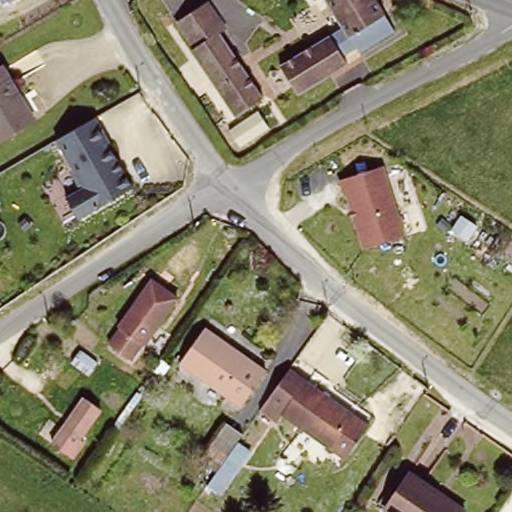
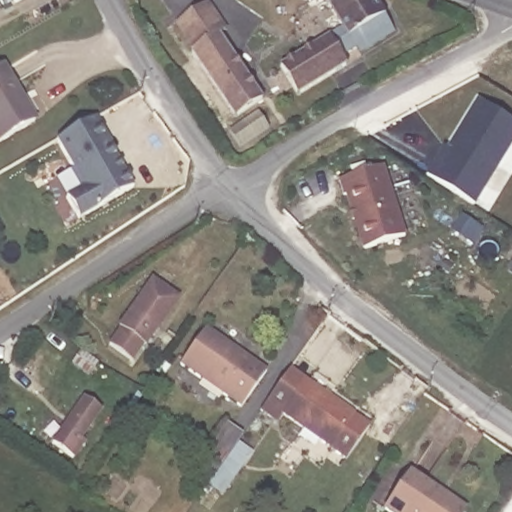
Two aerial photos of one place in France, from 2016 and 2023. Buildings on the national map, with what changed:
unchanged [(6,2),(5,0),(10,0),(6,2)]
unchanged [(334,2),(327,4),(325,0),(338,0),(334,2)]
unchanged [(399,35),(365,52),(356,36),(353,38),(334,2),(338,0),(380,0),(399,35)]
unchanged [(201,6),(263,100),(233,118),(173,23),(201,6)]
unchanged [(349,32),(353,38),(356,36),(361,44),(342,53),(348,63),(299,91),(281,62),(344,23),(349,32)]
unchanged [(35,81),(46,100),(39,104),(43,109),(0,136),(0,64),(11,57),(28,85),(35,81)]
new [(438,154),(442,157),(476,98),(512,118),(512,138),(474,203),(426,175),(438,154)]
unchanged [(106,148),(115,164),(121,175),(131,191),(76,222),(64,201),(81,191),(55,144),(93,121),(108,147),(106,148)]
unchanged [(407,235),(363,247),(346,195),(341,195),(336,180),(384,165),(407,235)]
unchanged [(154,275),(181,295),(150,338),(148,336),(134,354),(113,338),(125,320),(123,318),(154,275)]
unchanged [(204,326),(266,372),(241,406),(179,360),(204,326)]
unchanged [(288,364),(371,425),(348,457),(282,409),(279,414),(261,401),(288,364)]
unchanged [(77,438),(81,441),(68,460),(47,445),(85,393),(101,405),(77,438)]
unchanged [(201,450),(215,429),(231,441),(216,462),(201,450)]
unchanged [(414,467),(468,507),(464,512),(402,512),(388,501),(414,467)]

